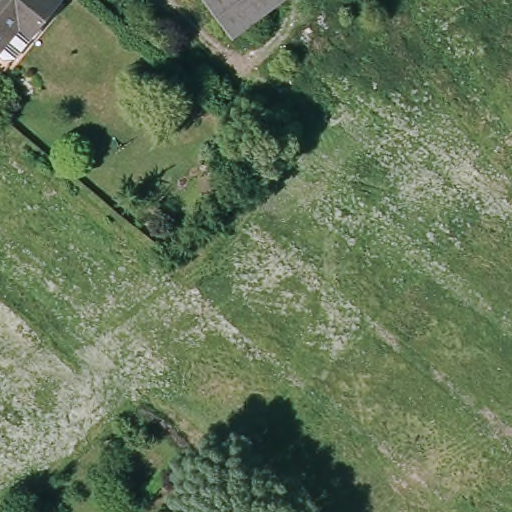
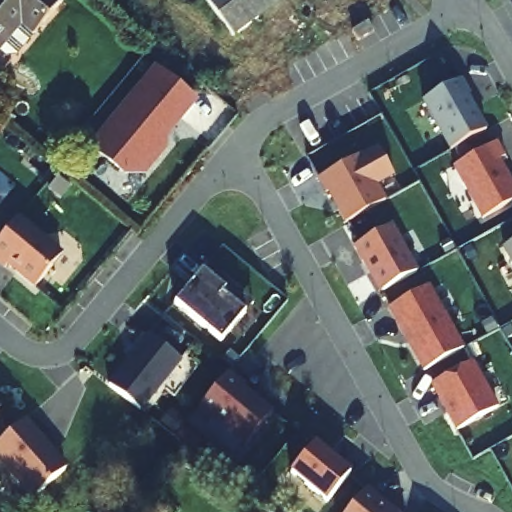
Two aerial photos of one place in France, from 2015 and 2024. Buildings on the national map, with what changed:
unchanged [(0,0),(44,0),(5,51),(0,51),(0,0)]
unchanged [(231,40),(202,0),(286,0),(231,40)]
new [(350,30),(366,21),(372,31),(356,40),(350,30)]
new [(90,146),(154,68),(192,100),(178,117),(174,114),(161,129),(163,146),(143,171),(123,173),(90,146)]
new [(486,131),(449,150),(423,102),(459,81),(486,131)]
new [(506,156),(500,160),(512,183),(512,205),(482,221),(452,168),(498,144),(506,156)]
new [(327,191),(325,193),(317,177),(376,145),(392,174),(375,184),(384,200),(345,222),(327,191)]
new [(33,290),(7,268),(5,270),(0,266),(0,240),(19,216),(62,253),(33,290)]
new [(364,261),(362,262),(353,246),(390,225),(416,271),(381,291),(364,261)]
new [(504,248),(512,244),(512,263),(504,248)]
new [(239,293),(251,303),(243,313),(219,342),(172,303),(205,265),(239,293)]
new [(388,307),(427,285),(462,348),(423,370),(408,343),(410,342),(407,336),(404,335),(388,307)]
new [(129,358),(141,342),(173,367),(134,418),(102,393),(123,365),(125,366),(129,361),(129,358)]
new [(471,361),(497,407),(456,430),(431,384),(471,361)]
new [(272,411),(244,446),(198,410),(229,372),(272,411)]
new [(31,499),(0,463),(0,446),(27,422),(64,470),(31,499)]
new [(350,471),(327,500),(290,472),(314,442),(350,471)]
new [(380,498),(377,501),(386,508),(387,506),(394,512),(345,512),(346,510),(366,487),(380,498)]

